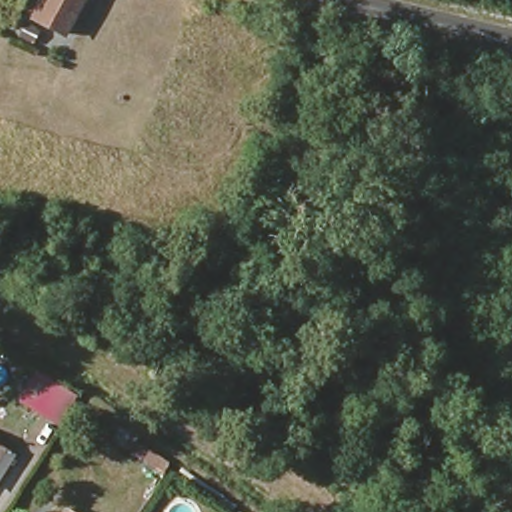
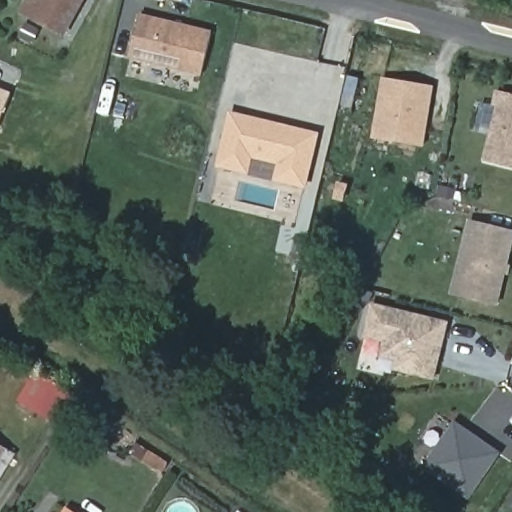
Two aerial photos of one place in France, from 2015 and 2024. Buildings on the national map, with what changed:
unchanged [(61,23),(49,42),(31,31),(43,14),(29,6),(32,0),(84,0),(68,28),(61,23)]
new [(210,33),(200,75),(129,58),(139,16),(210,33)]
new [(383,81),(430,89),(420,144),(374,136),(383,81)]
new [(0,88),(11,93),(0,122),(0,88)]
new [(504,108),(507,94),(512,95),(512,169),(482,161),(496,106),(504,108)]
new [(280,163),(250,155),(246,172),(218,166),(231,115),(269,125),(272,129),(278,131),(279,127),(315,136),(303,186),(275,179),(280,163)]
new [(497,306),(450,295),(467,219),(512,230),(512,246),(507,264),(511,265),(508,276),(505,276),(497,306)]
new [(393,361),(378,358),(382,344),(361,337),(370,304),(449,322),(434,380),(391,370),(393,361)]
new [(467,502),(420,470),(452,421),(501,454),(467,502)]
unchanged [(0,460),(0,447),(5,451),(0,460)]
unchanged [(75,509),(81,512),(73,512),(75,509)]

